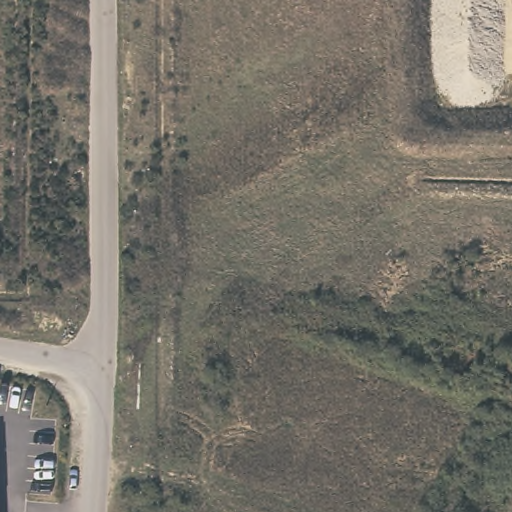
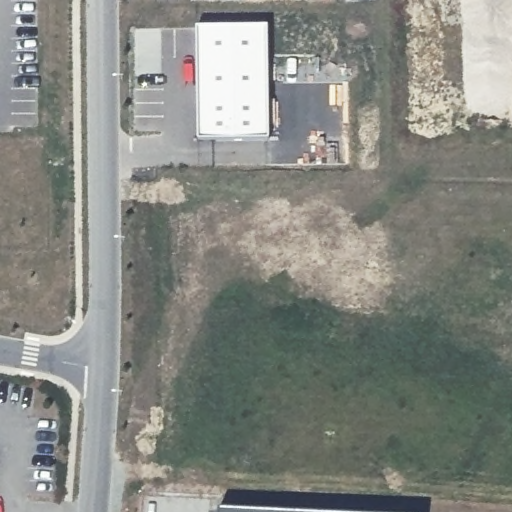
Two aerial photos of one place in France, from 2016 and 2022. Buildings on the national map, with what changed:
new [(268,27),(270,140),(198,141),(197,28),(268,27)]
new [(254,512),(219,512),(219,510),(254,512)]

